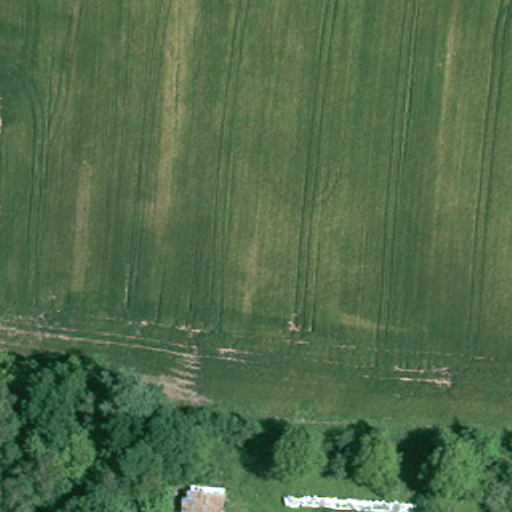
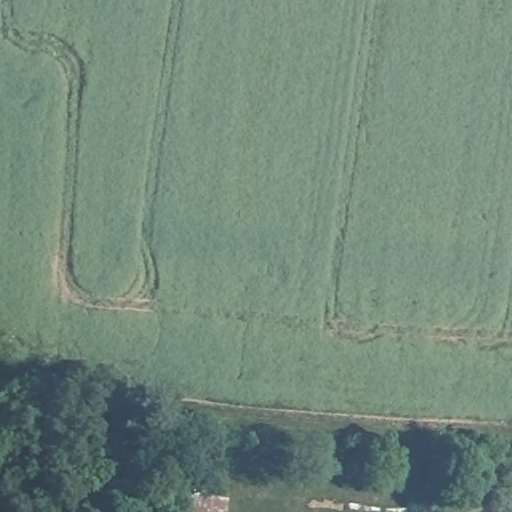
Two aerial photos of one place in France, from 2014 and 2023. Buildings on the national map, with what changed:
unchanged [(225,512),(188,512),(189,494),(197,494),(197,478),(232,482),(225,512)]

